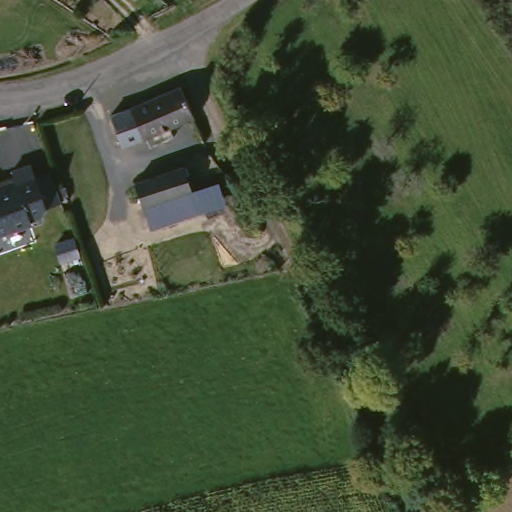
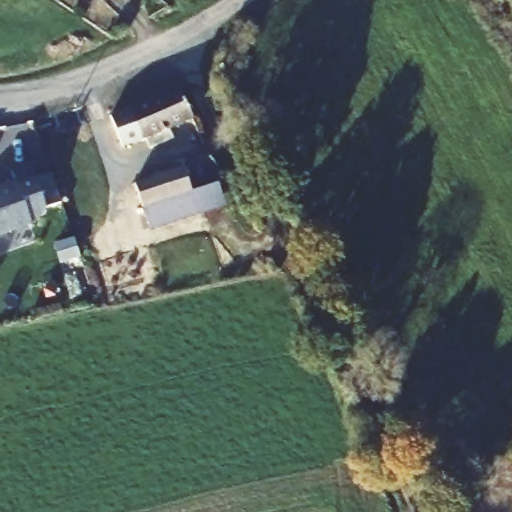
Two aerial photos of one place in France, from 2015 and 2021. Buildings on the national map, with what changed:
unchanged [(197,120),(174,130),(178,139),(154,150),(150,141),(127,150),(116,118),(183,89),(197,120)]
unchanged [(45,209),(45,210),(42,216),(30,222),(31,225),(0,236),(0,191),(16,186),(11,173),(30,166),(35,180),(50,175),(60,204),(45,209)]
unchanged [(195,217),(148,232),(133,184),(180,167),(195,217)]

